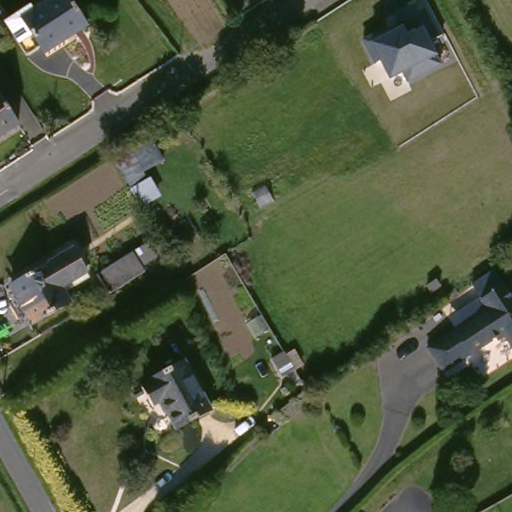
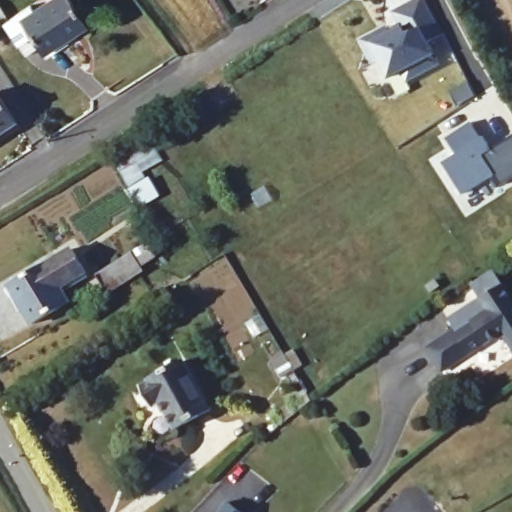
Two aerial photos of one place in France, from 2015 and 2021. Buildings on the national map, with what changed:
unchanged [(83,0),(99,26),(59,50),(54,43),(39,53),(20,20),(46,4),(49,8),(62,0),(83,0)]
unchanged [(403,73),(389,80),(380,63),(374,65),(364,44),(402,25),(398,10),(424,0),(427,0),(444,36),(432,41),(445,66),(408,83),(403,73)]
unchanged [(29,128),(0,146),(0,101),(9,95),(29,128)]
new [(461,154),(450,138),(474,121),(485,137),(487,135),(495,148),(512,136),(512,180),(506,184),(499,173),(468,195),(447,164),(461,154)]
unchanged [(174,154),(155,167),(169,190),(152,203),(126,157),(161,132),(174,154)]
unchanged [(152,247),(164,268),(127,288),(116,267),(152,247)]
unchanged [(93,271),(70,286),(76,296),(77,299),(40,322),(20,286),(81,250),(93,271)]
unchanged [(505,303),(500,294),(512,286),(512,334),(460,364),(445,338),(505,303)]
unchanged [(169,396),(162,400),(152,381),(164,375),(161,371),(192,357),(219,408),(185,426),(169,396)]
new [(229,499),(247,512),(220,512),(229,499)]

